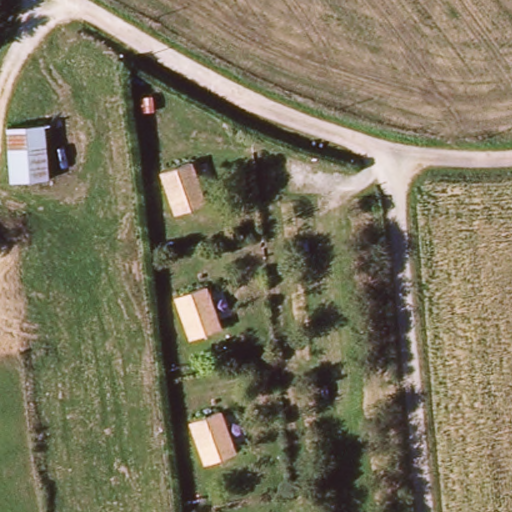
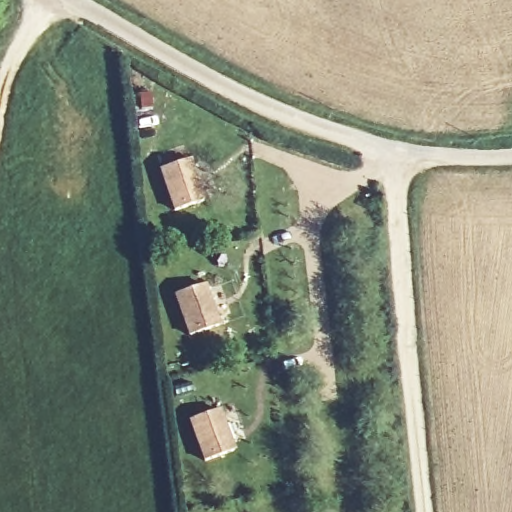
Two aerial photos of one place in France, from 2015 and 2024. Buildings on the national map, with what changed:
demolished [(47,176),(9,178),(5,127),(42,123),(47,176)]
unchanged [(193,160),(207,201),(180,210),(166,170),(193,160)]
unchanged [(182,295),(209,285),(223,325),(195,334),(182,295)]
unchanged [(206,461),(191,418),(219,410),(234,452),(206,461)]

